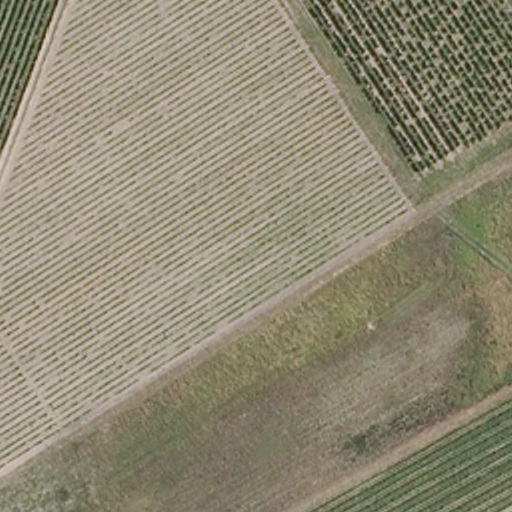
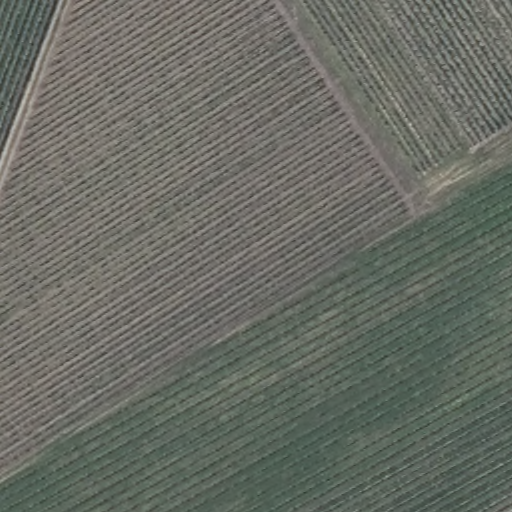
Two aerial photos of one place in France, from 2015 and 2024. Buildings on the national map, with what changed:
[]

